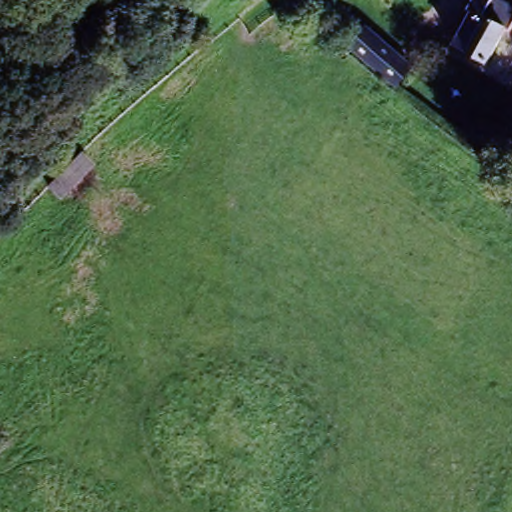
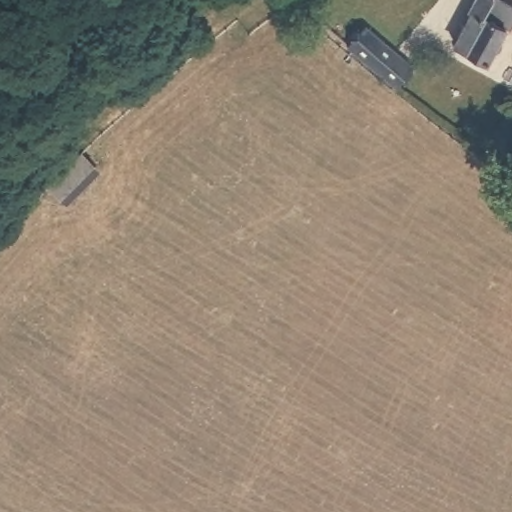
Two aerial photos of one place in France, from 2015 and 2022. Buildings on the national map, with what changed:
unchanged [(486,70),(447,47),(475,0),(505,0),(512,4),(512,28),(486,70)]
unchanged [(412,67),(398,89),(343,50),(358,31),(412,67)]

